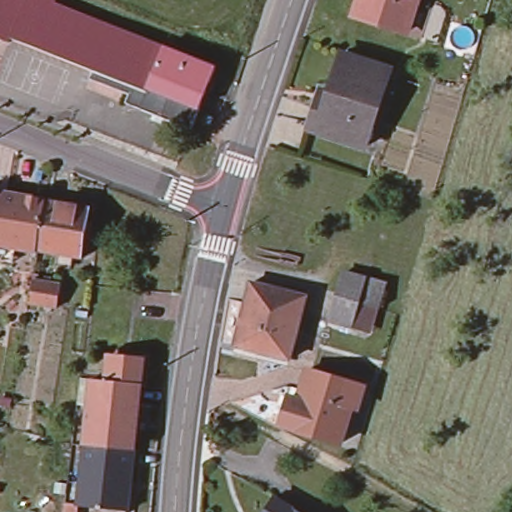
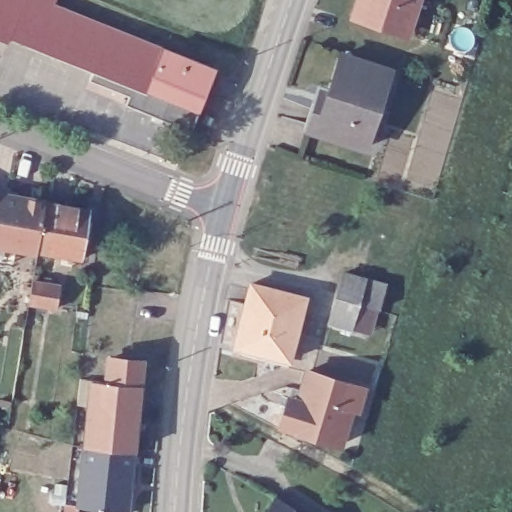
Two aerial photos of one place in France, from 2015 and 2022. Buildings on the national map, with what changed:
unchanged [(8,38),(11,40),(8,46),(0,42),(0,0),(24,0),(8,38)]
unchanged [(128,97),(88,82),(91,72),(11,40),(8,38),(24,0),(41,0),(55,5),(160,48),(146,89),(200,110),(190,132),(126,106),(128,97)]
unchanged [(55,5),(41,0),(57,0),(55,5)]
unchanged [(420,35),(405,31),(398,29),(353,16),(358,0),(431,0),(420,35)]
unchanged [(160,48),(215,69),(200,110),(146,89),(160,48)]
unchanged [(364,146),(310,129),(317,103),(325,104),(341,52),(389,67),(364,146)]
unchanged [(2,259),(0,258),(0,187),(16,190),(48,196),(40,245),(20,241),(16,261),(2,259)]
unchanged [(48,196),(93,203),(85,252),(40,245),(48,196)]
unchanged [(325,321),(333,295),(340,271),(362,277),(380,282),(373,307),(355,302),(346,327),(325,321)]
unchanged [(30,279),(58,284),(55,307),(27,302),(30,279)]
unchanged [(250,283),(305,295),(290,359),(235,347),(250,283)]
unchanged [(85,383),(96,383),(100,360),(135,363),(133,386),(130,406),(125,451),(125,469),(120,512),(107,512),(71,508),(76,466),(77,446),(82,402),(85,383)]
unchanged [(337,378),(333,390),(321,435),(320,435),(285,426),(281,425),(290,396),(292,387),(295,388),(302,389),(307,370),(337,378)]
unchanged [(333,390),(337,378),(350,383),(357,385),(352,406),(340,442),(321,435),(333,390)]
unchanged [(294,512),(268,512),(275,500),(294,512)]

